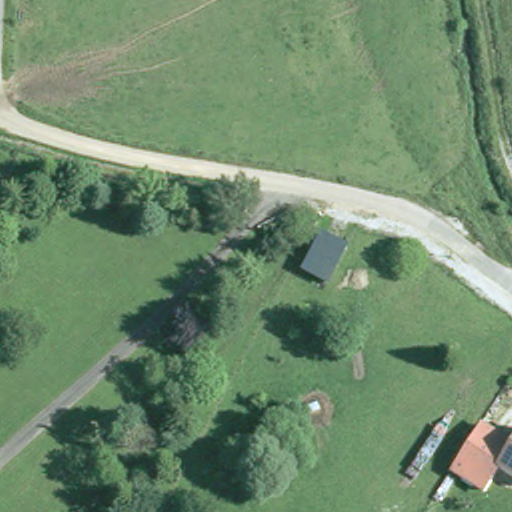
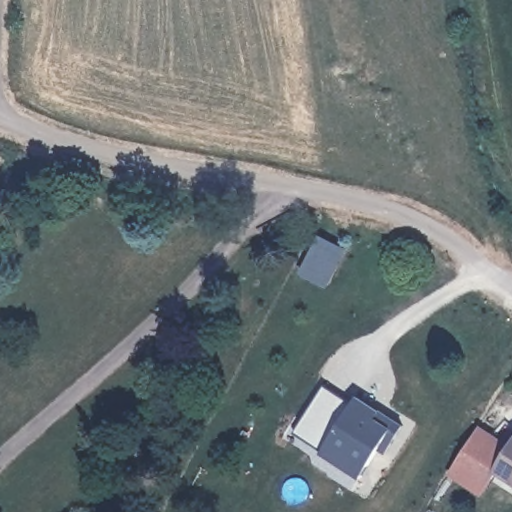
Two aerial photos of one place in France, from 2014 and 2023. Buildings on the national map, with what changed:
new [(319,237),(345,250),(326,286),(301,273),(319,237)]
new [(324,386),(353,405),(357,398),(378,411),(403,427),(386,454),(379,450),(361,478),(322,452),(293,434),(301,421),(324,386)]
unchanged [(509,445),(496,467),(482,490),(455,474),(466,456),(465,455),(480,428),(483,430),(509,445)]
unchanged [(512,441),(512,478),(496,467),(509,445),(512,441)]

